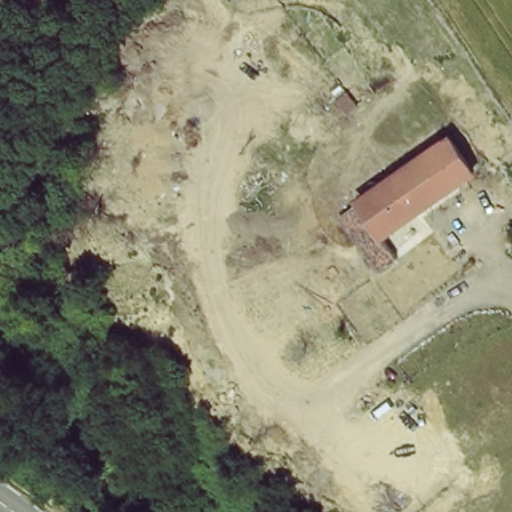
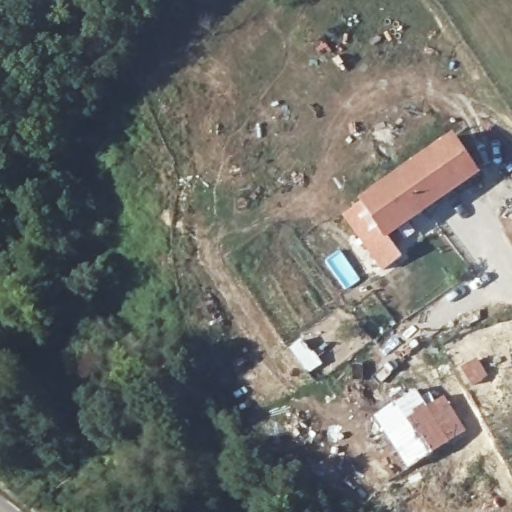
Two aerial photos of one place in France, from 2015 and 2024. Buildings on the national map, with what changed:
unchanged [(385,237),(365,200),(455,144),(477,181),(385,237)]
new [(401,255),(382,269),(344,216),(365,200),(385,237),(401,255)]
new [(415,389),(427,406),(443,396),(466,430),(409,468),(375,416),(415,389)]

